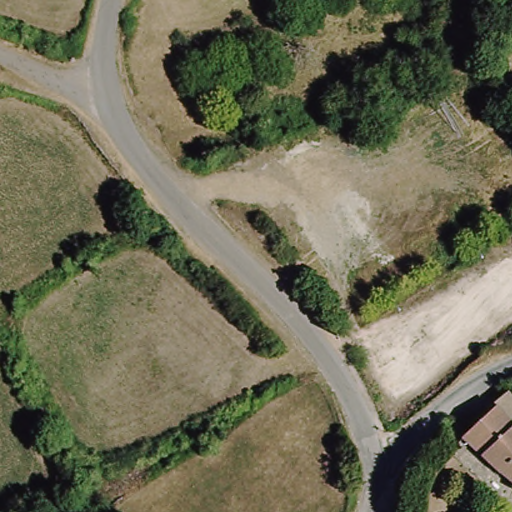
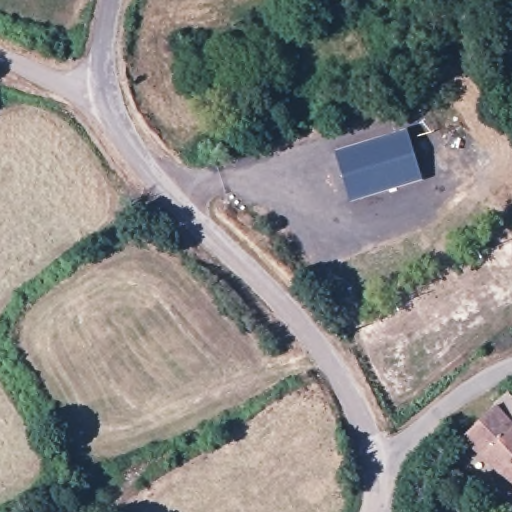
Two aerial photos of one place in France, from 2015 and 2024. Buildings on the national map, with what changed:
new [(407,128),(422,179),(350,201),(333,150),(407,128)]
unchanged [(512,414),(512,478),(498,466),(468,436),(504,406),(512,414)]

